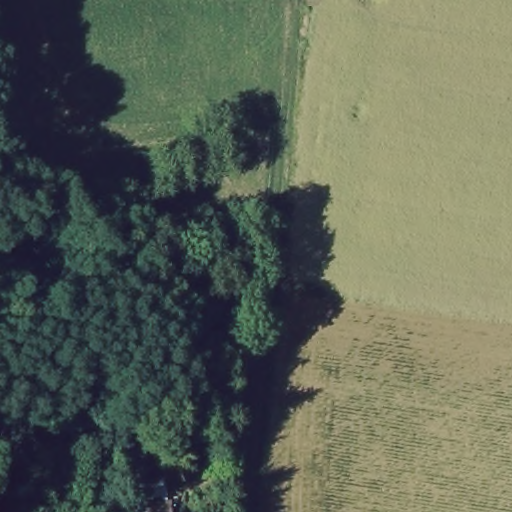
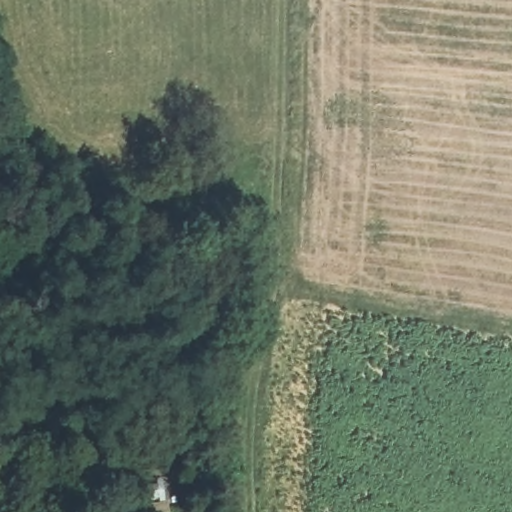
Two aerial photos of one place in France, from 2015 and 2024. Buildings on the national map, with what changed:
unchanged [(165,473),(173,512),(145,512),(140,480),(165,473)]

